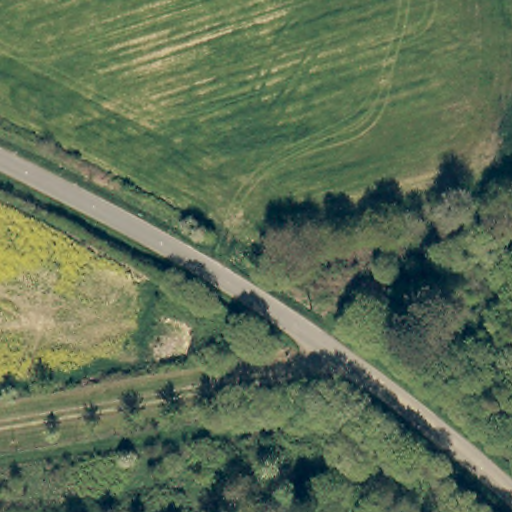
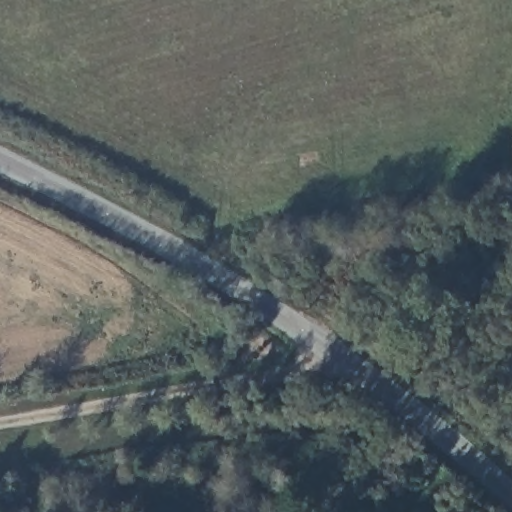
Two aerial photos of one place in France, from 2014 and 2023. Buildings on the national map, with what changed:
[]

